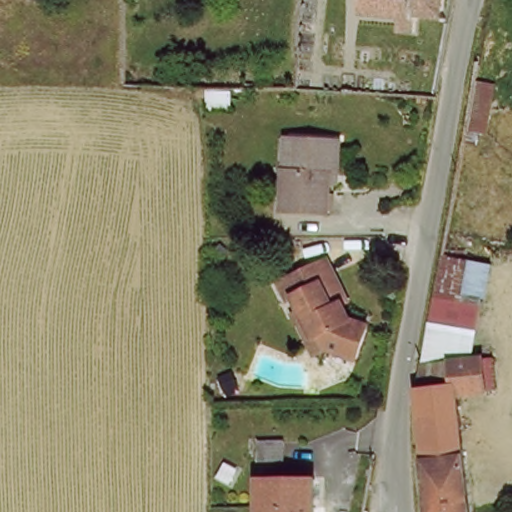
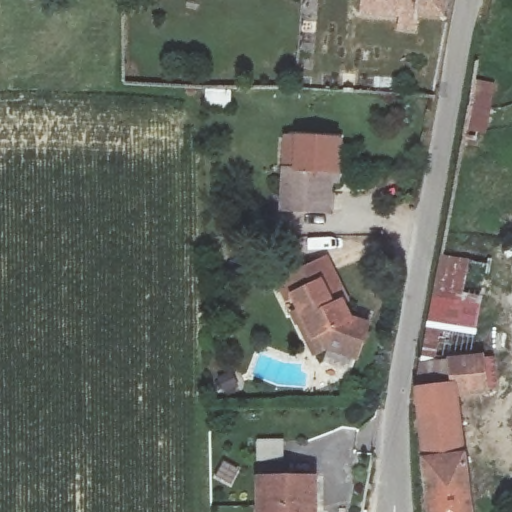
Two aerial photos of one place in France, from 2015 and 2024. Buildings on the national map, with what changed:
unchanged [(441,0),(440,14),(423,13),(422,22),(398,21),(397,10),(360,10),(361,0),(441,0)]
unchanged [(331,185),(330,213),(285,210),(287,171),(290,139),(300,139),(343,142),(341,176),(340,186),(331,185)]
unchanged [(285,294),(279,276),(325,258),(341,302),(336,305),(342,321),(360,329),(345,360),(316,348),(305,352),(298,336),(305,335),(289,293),(285,294)]
unchanged [(452,356),(491,353),(495,388),(480,392),(457,398),(468,512),(426,512),(416,385),(419,366),(442,259),(468,262),(452,356)]
unchanged [(240,438),(270,439),(270,448),(270,457),(241,457),(240,447),(240,438)]
unchanged [(261,471),(311,472),(311,512),(261,512),(261,471)]

